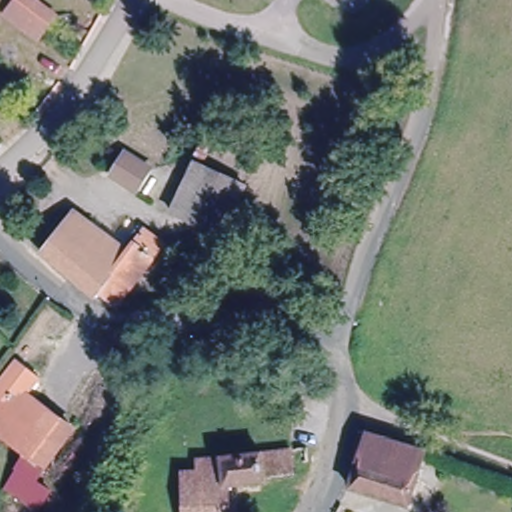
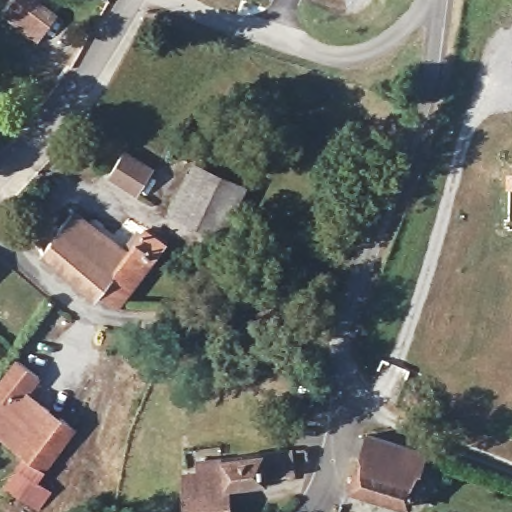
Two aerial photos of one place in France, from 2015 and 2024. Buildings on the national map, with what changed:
unchanged [(7,16),(18,0),(36,0),(59,15),(41,43),(7,16)]
unchanged [(192,164),(201,138),(234,151),(220,174),(249,188),(223,241),(172,215),(192,164)]
unchanged [(144,189),(117,171),(127,149),(155,165),(144,189)]
unchanged [(43,256),(69,216),(127,256),(143,230),(148,233),(163,244),(120,314),(43,256)]
unchanged [(30,454),(0,433),(0,415),(13,394),(0,384),(0,380),(14,359),(40,380),(32,396),(79,427),(52,470),(30,454)]
unchanged [(416,489),(411,506),(354,485),(370,432),(426,452),(416,489)]
unchanged [(30,454),(52,470),(43,484),(56,493),(41,512),(37,512),(6,489),(30,454)]
unchanged [(208,483),(206,463),(272,456),(274,487),(231,491),(232,512),(191,512),(189,485),(208,483)]

